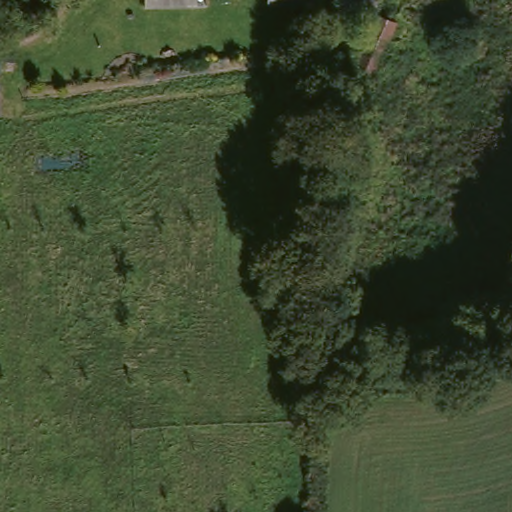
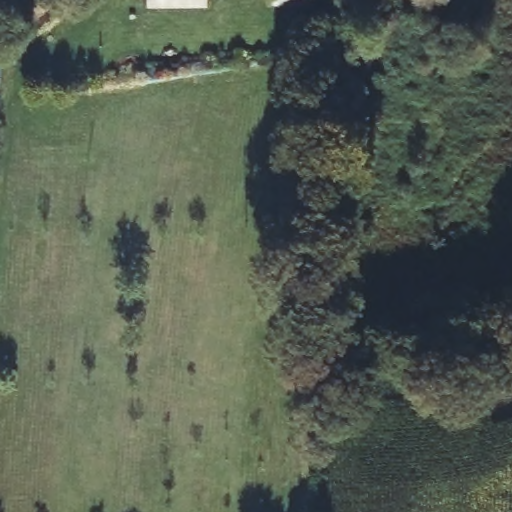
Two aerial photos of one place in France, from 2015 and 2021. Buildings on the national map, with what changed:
unchanged [(269,2),(269,0),(312,0),(311,9),(302,6),(269,2)]
unchanged [(380,0),(379,16),(378,23),(344,18),(346,0),(380,0)]

